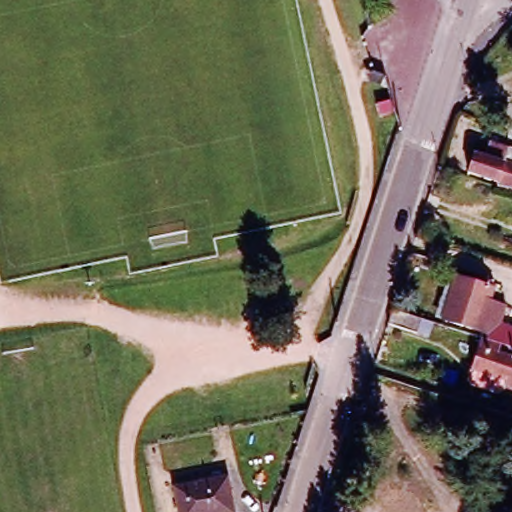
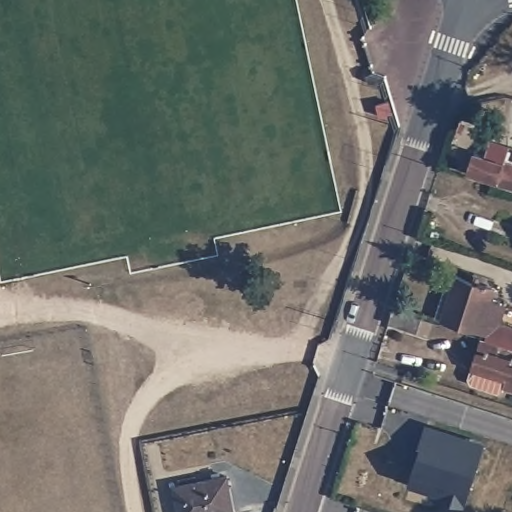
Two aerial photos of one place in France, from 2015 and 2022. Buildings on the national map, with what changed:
unchanged [(465,168),(472,150),(481,153),(486,138),(505,144),(512,147),(512,157),(510,162),(512,163),(512,184),(465,168)]
unchanged [(480,326),(443,314),(435,312),(450,269),(457,271),(493,283),(480,326)]
unchanged [(420,320),(415,333),(387,324),(391,311),(420,320)]
unchanged [(512,355),(512,383),(506,381),(507,376),(473,364),(483,334),(488,335),(492,321),(512,328),(512,343),(499,339),(495,349),(512,355)]
new [(420,441),(417,440),(423,422),(480,440),(462,497),(455,500),(442,496),(439,490),(440,487),(408,477),(420,441)]
unchanged [(227,476),(235,512),(180,512),(175,488),(227,476)]

